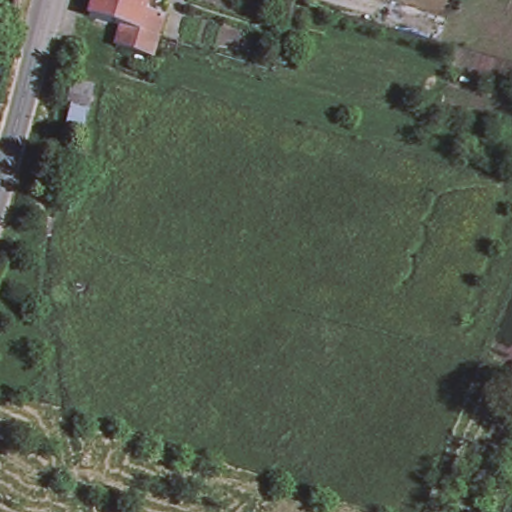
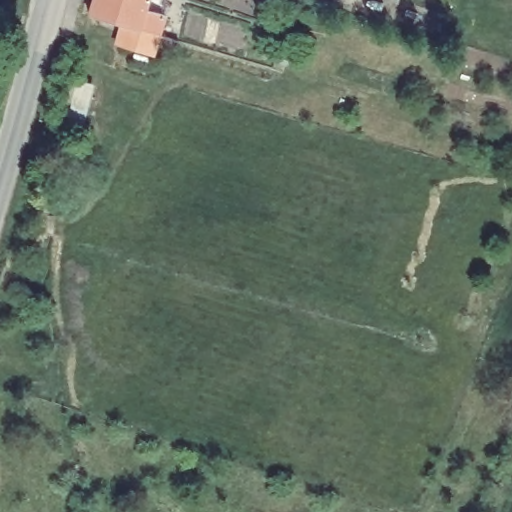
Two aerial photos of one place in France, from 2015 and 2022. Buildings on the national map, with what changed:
unchanged [(140,10),(161,15),(155,32),(167,35),(165,41),(86,20),(92,0),(143,0),(140,10)]
unchanged [(96,88),(90,107),(82,131),(63,131),(70,106),(65,104),(71,83),(96,88)]

